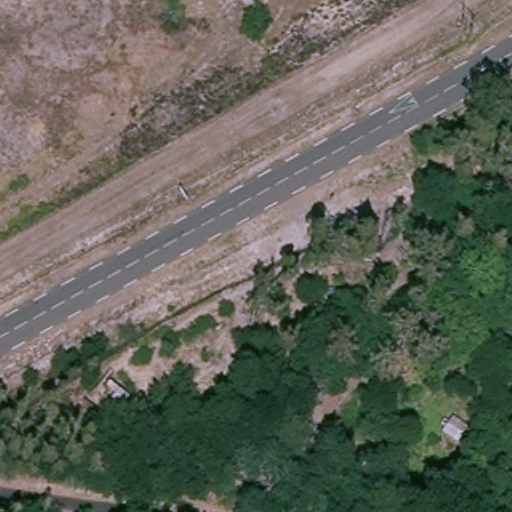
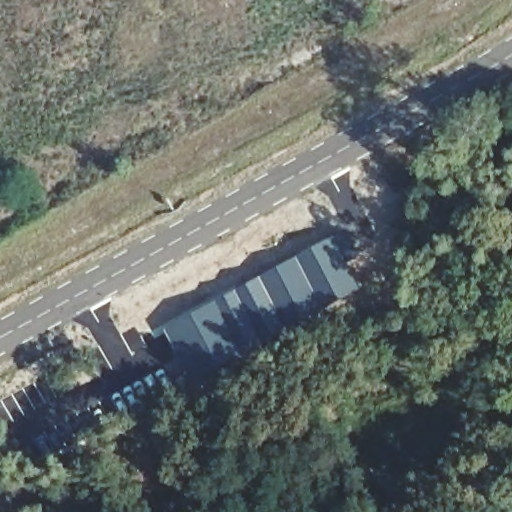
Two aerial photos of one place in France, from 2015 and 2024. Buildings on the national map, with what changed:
new [(337,233),(365,287),(343,298),(314,245),(337,233)]
new [(314,245),(343,298),(322,309),(292,330),(261,275),(314,245)]
new [(261,275),(292,330),(250,358),(195,386),(161,325),(261,275)]

